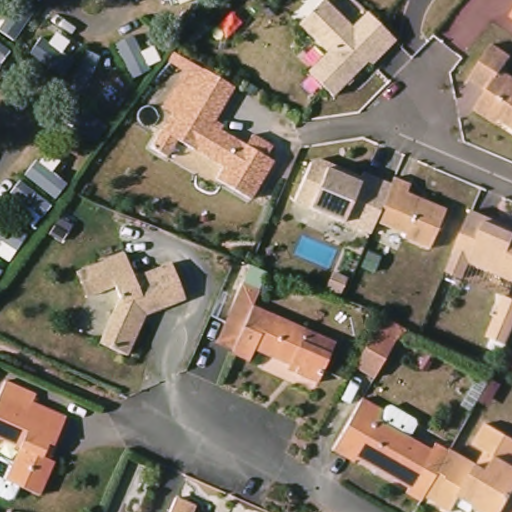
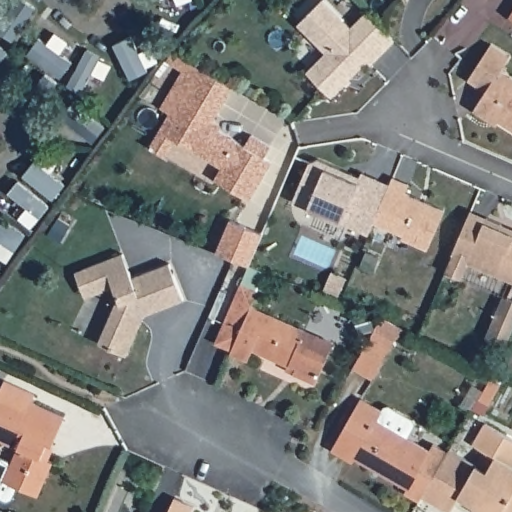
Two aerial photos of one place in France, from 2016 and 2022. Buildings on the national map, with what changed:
unchanged [(394,40),(371,64),(367,60),(332,96),(307,71),(327,51),(298,23),(322,0),(325,0),(351,27),(366,12),(394,40)]
unchanged [(512,13),(512,18),(510,16),(512,13)]
unchanged [(474,109),(486,90),(468,79),(491,44),(510,56),(501,70),(512,77),(512,128),(499,120),(497,124),(489,119),(474,109)]
unchanged [(233,87),(211,124),(245,145),(252,134),(271,146),(265,156),(272,161),(250,199),(215,178),(223,166),(176,139),(166,156),(150,146),(161,128),(170,113),(174,116),(203,69),(233,87)]
unchanged [(384,198),(374,221),(371,228),(369,233),(293,201),(310,162),(318,159),(340,168),(338,173),(344,175),(351,173),(360,176),(362,172),(390,184),(384,198)]
unchanged [(409,184),(406,192),(445,209),(428,248),(402,237),(404,234),(374,221),(384,198),(390,184),(393,177),(409,184)]
unchanged [(512,281),(468,262),(462,278),(445,271),(448,264),(471,210),(512,228),(512,281)]
new [(232,216),(265,230),(251,262),(218,250),(232,216)]
unchanged [(144,318),(129,353),(101,341),(121,296),(118,288),(106,293),(90,299),(85,286),(80,274),(126,255),(136,279),(173,263),(188,299),(154,313),(145,317),(144,318)]
unchanged [(289,364),(252,348),(248,360),(230,352),(232,349),(216,341),(242,282),(258,290),(252,305),(304,328),(333,341),(328,352),(316,381),(294,372),(287,369),(289,364)]
unchanged [(393,338),(373,375),(353,364),(372,329),(373,327),(393,338)]
unchanged [(48,463),(53,465),(38,500),(4,485),(18,452),(0,444),(0,395),(3,388),(32,401),(30,406),(64,421),(53,448),(55,449),(48,463)]
unchanged [(336,451),(340,444),(365,398),(387,410),(389,407),(392,406),(414,418),(415,421),(408,433),(435,449),(438,444),(453,452),(452,453),(449,458),(430,491),(427,496),(424,501),(410,492),(413,488),(360,458),(358,462),(336,451)]
unchanged [(479,504),(464,496),(455,512),(427,496),(430,491),(449,458),(452,453),(453,452),(454,449),(481,464),(489,451),(477,444),(490,422),(512,435),(512,512),(487,512),(478,507),(479,504)]
unchanged [(199,506),(197,512),(173,512),(179,498),(199,506)]

